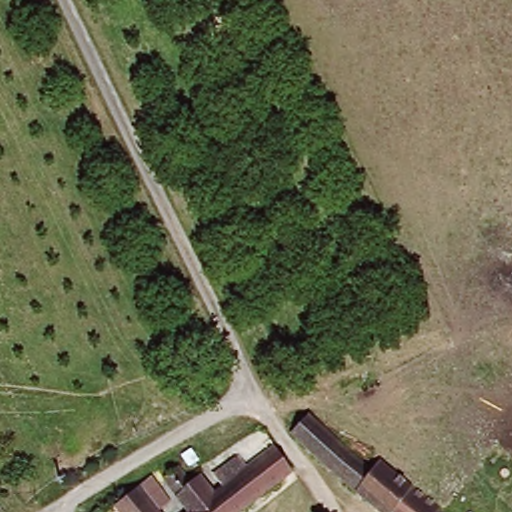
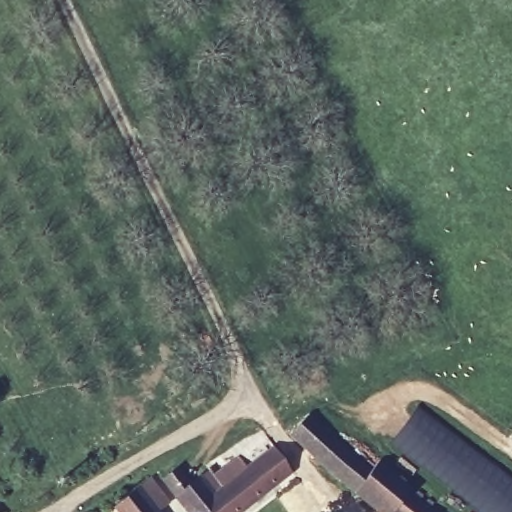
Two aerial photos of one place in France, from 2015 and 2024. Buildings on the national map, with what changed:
new [(512,512),(481,512),(390,442),(418,406),(512,478),(512,512)]
unchanged [(404,512),(378,512),(307,455),(290,437),(308,416),(375,469),(380,462),(418,494),(404,512)]
unchanged [(242,512),(187,512),(165,483),(180,473),(190,486),(199,479),(212,494),(220,488),(212,474),(234,459),(232,454),(258,434),(289,478),(242,512)]
unchanged [(113,508),(147,482),(163,504),(153,512),(116,512),(113,508)]
unchanged [(440,512),(404,512),(418,494),(440,512)]

